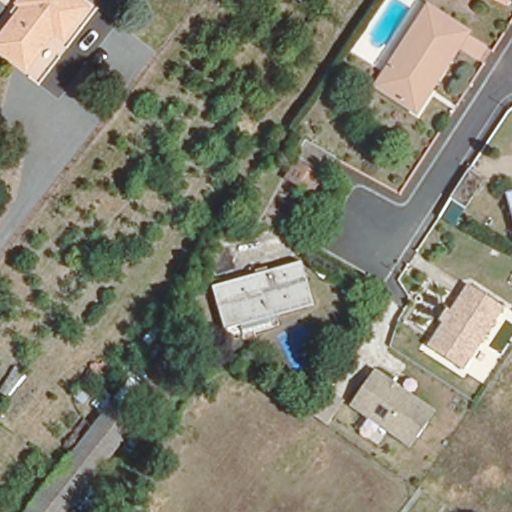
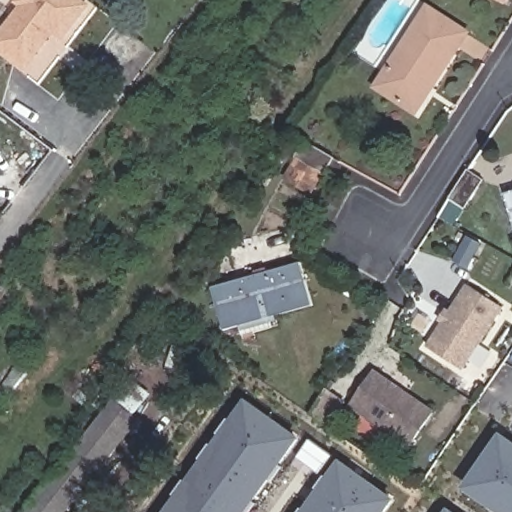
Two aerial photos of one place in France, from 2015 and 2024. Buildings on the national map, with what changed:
unchanged [(87,2),(62,34),(54,27),(25,65),(0,45),(0,31),(22,2),(19,0),(84,0),(87,2)]
unchanged [(415,110),(374,84),(386,65),(415,21),(425,4),(463,29),(455,42),(457,44),(431,85),(426,91),(415,110)]
unchanged [(265,90),(280,100),(271,116),(256,105),(265,90)]
unchanged [(226,166),(214,157),(243,112),(256,122),(226,166)]
unchanged [(302,147),(329,162),(320,177),(319,177),(306,199),(286,187),(299,165),(290,159),(300,145),(302,147)]
unchanged [(459,182),(467,169),(482,179),(463,209),(448,199),(459,182)]
unchanged [(505,196),(512,193),(512,219),(505,196)]
unchanged [(268,317),(225,329),(214,288),(301,262),(310,297),(311,303),(268,317)]
unchanged [(440,325),(445,317),(450,320),(468,292),(502,313),(461,377),(427,355),(445,328),(440,325)]
unchanged [(409,447),(350,407),(375,371),(433,411),(409,447)]
unchanged [(310,416),(326,389),(341,399),(325,427),(310,416)]
unchanged [(140,420),(68,512),(23,512),(114,397),(140,420)]
new [(245,512),(167,512),(246,403),(297,440),(245,512)]
new [(501,437),(512,445),(512,512),(499,512),(465,488),(501,437)]
new [(391,501),(383,512),(306,512),(340,464),(391,501)]
new [(451,512),(449,512),(450,511),(451,512)]

